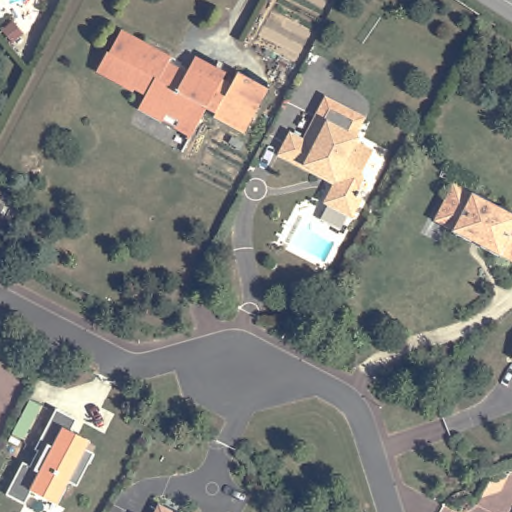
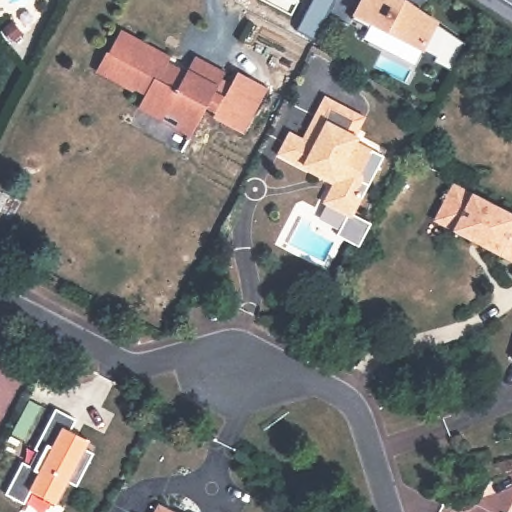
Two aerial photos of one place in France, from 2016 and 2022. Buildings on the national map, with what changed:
new [(434,62),(437,57),(352,15),(360,0),(407,0),(440,21),(437,27),(463,43),(451,70),(434,62)]
unchanged [(241,128),(228,121),(217,116),(219,109),(209,105),(195,133),(182,125),(185,119),(171,111),(167,116),(148,106),(154,95),(154,92),(142,86),(140,89),(104,69),(109,58),(115,54),(128,33),(145,43),(145,47),(171,61),(169,68),(188,78),(200,58),(228,71),(224,79),(233,83),(241,71),(252,76),(264,81),(241,128)]
unchanged [(355,148),(370,156),(363,170),(367,176),(362,187),(363,198),(354,216),(325,201),(332,187),(277,158),(288,137),(301,144),(314,121),(323,102),(347,115),(363,123),(354,141),(357,143),(355,148)]
unchanged [(440,203),(449,186),(509,217),(512,219),(512,267),(449,233),(450,229),(436,221),(445,205),(440,203)]
unchanged [(20,465),(29,470),(38,453),(34,450),(56,409),(76,421),(64,444),(72,449),(76,444),(91,453),(75,484),(68,480),(55,504),(32,493),(24,506),(5,496),(20,465)]
unchanged [(177,512),(152,512),(158,502),(177,512)]

